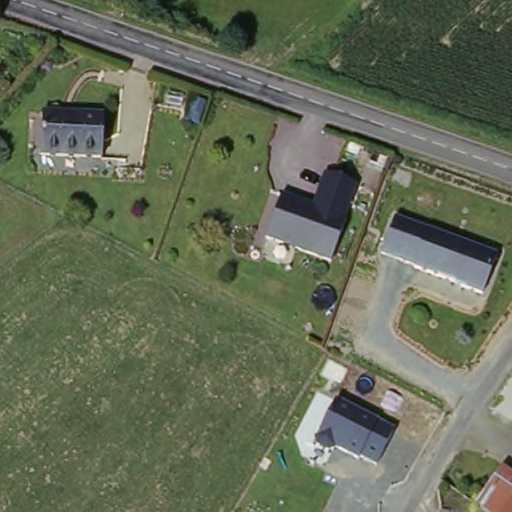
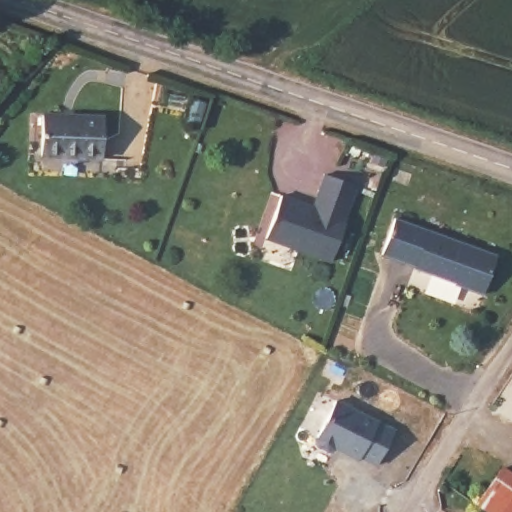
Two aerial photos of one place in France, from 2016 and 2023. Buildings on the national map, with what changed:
unchanged [(44,114),(102,118),(100,159),(42,158),(44,114)]
unchanged [(333,267),(265,243),(281,192),(313,199),(321,172),(361,187),(333,267)]
unchanged [(495,253),(483,290),(383,253),(396,215),(495,253)]
unchanged [(396,427),(378,469),(318,441),(335,401),(396,427)]
unchanged [(505,469),(512,475),(512,512),(488,512),(480,506),(505,469)]

